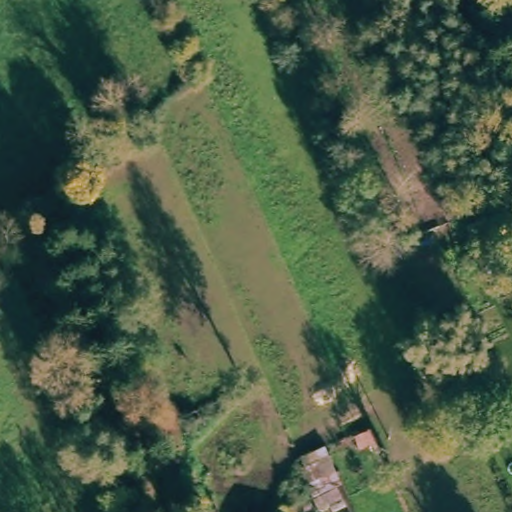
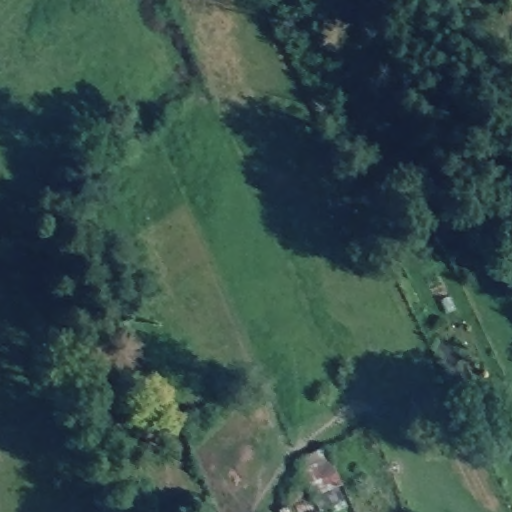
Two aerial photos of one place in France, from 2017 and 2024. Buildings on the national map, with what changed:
unchanged [(200,512),(193,512),(191,506),(202,501),(206,510),(200,512)]

